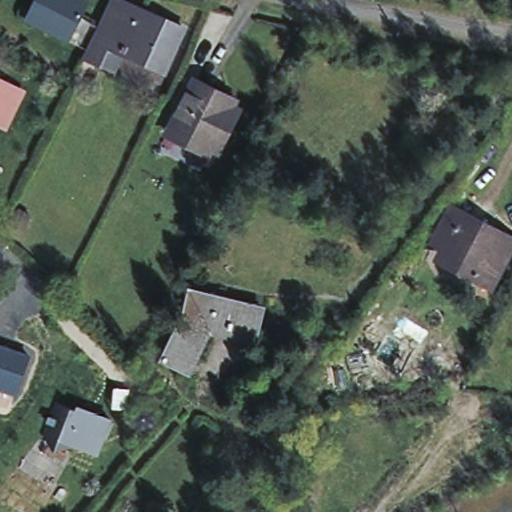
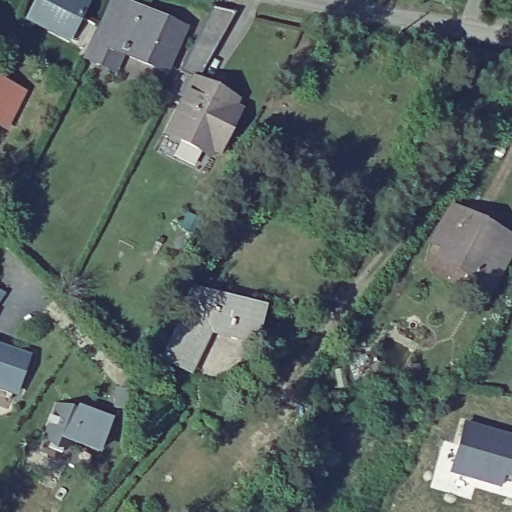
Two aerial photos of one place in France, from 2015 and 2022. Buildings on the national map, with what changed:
unchanged [(84,4),(65,39),(29,18),(40,0),(77,0),(84,4)]
unchanged [(141,8),(128,38),(98,24),(110,0),(121,0),(141,8)]
unchanged [(99,63),(82,55),(98,24),(128,38),(141,8),(183,27),(164,70),(121,52),(114,69),(99,63)]
unchanged [(163,134),(166,127),(191,78),(216,90),(213,97),(230,106),(238,110),(226,133),(219,130),(210,150),(206,157),(163,134)]
unchanged [(5,125),(0,123),(0,80),(22,91),(5,125)]
unchanged [(512,234),(512,239),(503,257),(488,250),(478,269),(447,252),(453,241),(440,234),(456,205),(512,234)]
new [(0,301),(0,288),(6,292),(0,301)]
unchanged [(259,334),(214,326),(191,375),(166,362),(189,317),(193,300),(194,294),(219,301),(265,311),(259,334)]
unchanged [(18,390),(0,384),(0,345),(29,355),(18,390)]
unchanged [(86,414),(73,446),(42,434),(55,401),(86,414)]
new [(500,485),(451,471),(465,423),(512,437),(512,481),(502,478),(500,485)]

